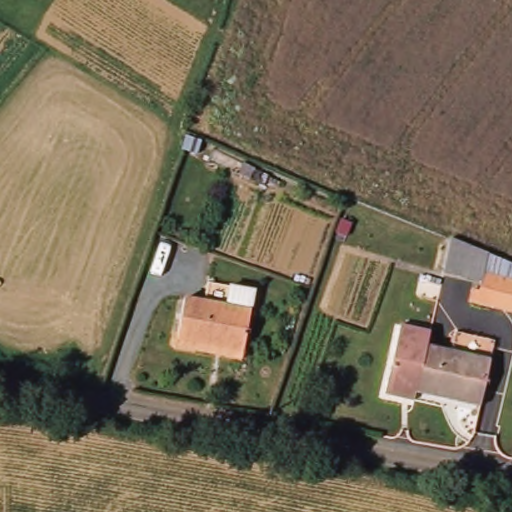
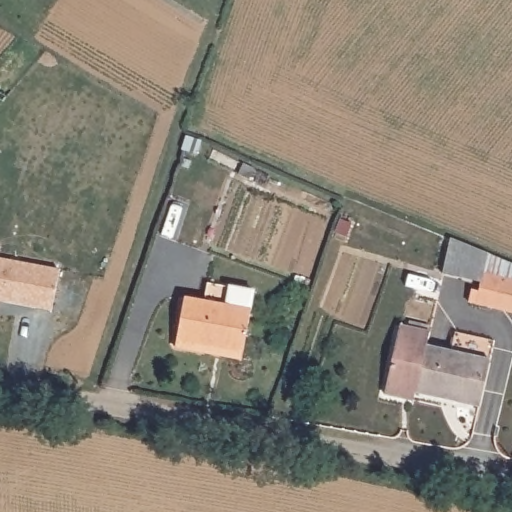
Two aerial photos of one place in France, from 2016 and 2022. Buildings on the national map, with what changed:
unchanged [(467,300),(471,289),(479,289),(487,250),(512,262),(512,312),(467,300)]
new [(53,310),(0,302),(0,259),(59,269),(53,310)]
unchanged [(175,347),(177,339),(184,299),(204,303),(207,283),(254,292),(244,352),(242,359),(175,347)]
unchanged [(430,333),(427,347),(451,352),(456,333),(494,341),(490,361),(479,407),(416,392),(414,401),(384,394),(399,325),(430,333)]

